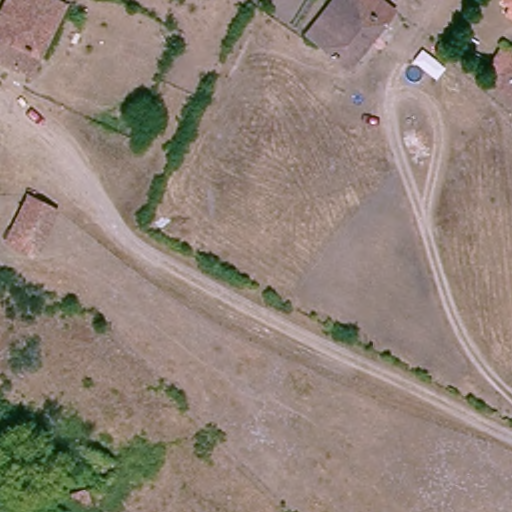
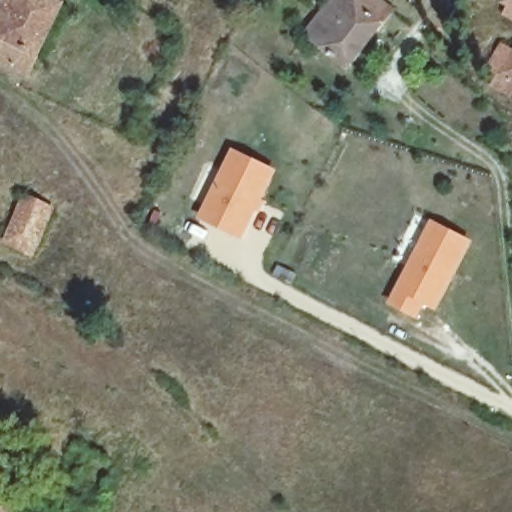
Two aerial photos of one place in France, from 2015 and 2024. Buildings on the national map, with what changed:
unchanged [(0,35),(0,21),(12,0),(60,0),(70,6),(41,57),(0,35)]
unchanged [(396,6),(382,22),(345,66),(304,34),(331,0),(389,0),(396,6)]
unchanged [(510,7),(512,4),(512,8),(510,7)]
unchanged [(512,49),(512,80),(502,95),(486,85),(510,48),(512,49)]
new [(231,147),(277,170),(241,240),(195,217),(231,147)]
unchanged [(28,263),(2,247),(33,189),(61,203),(28,263)]
new [(429,218),(472,240),(434,312),(424,306),(416,319),(385,302),(429,218)]
demolished [(115,465),(90,511),(45,487),(71,441),(112,463),(115,465)]

